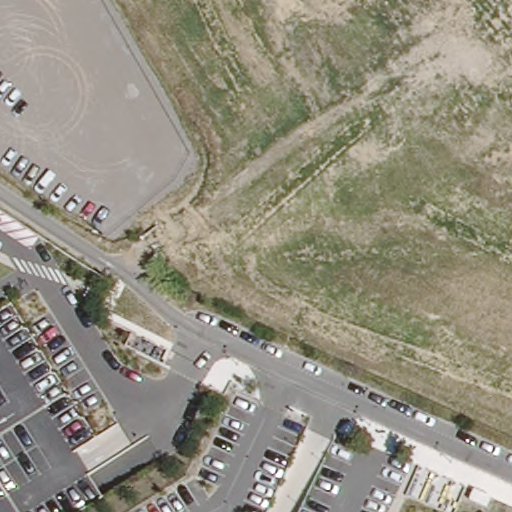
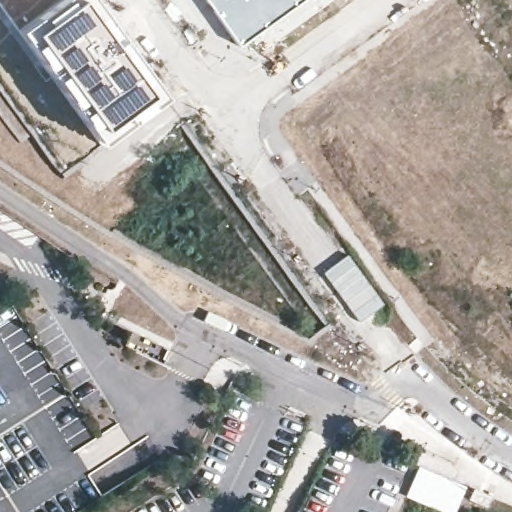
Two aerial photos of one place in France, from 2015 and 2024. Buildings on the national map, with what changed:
new [(96,143),(0,9),(0,0),(92,0),(162,97),(96,143)]
new [(238,47),(204,0),(303,0),(238,47)]
demolished [(499,39),(494,32),(478,6),(474,0),(512,0),(512,30),(499,39)]
new [(467,487),(456,512),(442,512),(405,496),(419,466),(467,487)]

